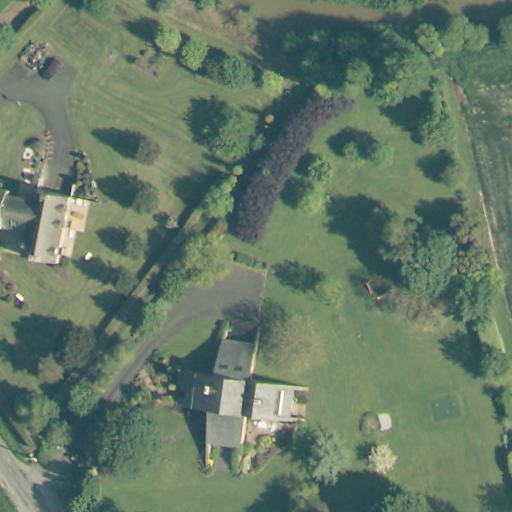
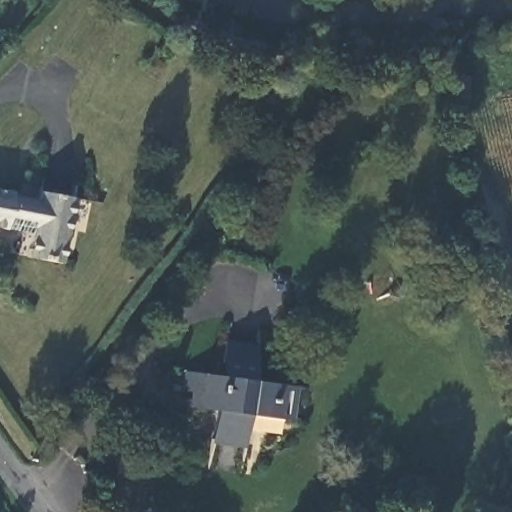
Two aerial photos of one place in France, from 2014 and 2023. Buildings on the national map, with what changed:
unchanged [(39,235),(30,234),(30,232),(14,228),(13,231),(0,228),(0,189),(19,193),(18,197),(45,202),(47,191),(80,196),(68,265),(34,258),(39,235)]
unchanged [(170,409),(171,406),(179,407),(180,401),(195,403),(195,396),(180,394),(182,376),(174,375),(174,373),(220,378),(222,360),(254,363),(252,383),(307,390),(306,393),(290,391),(287,418),(304,420),(304,425),(247,418),(244,447),(220,445),(222,414),(214,414),(170,409)]

